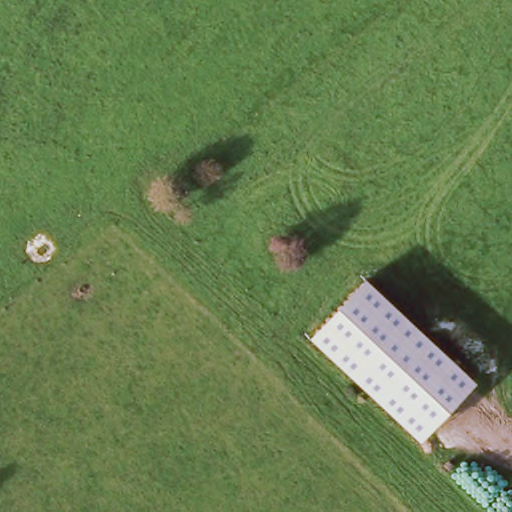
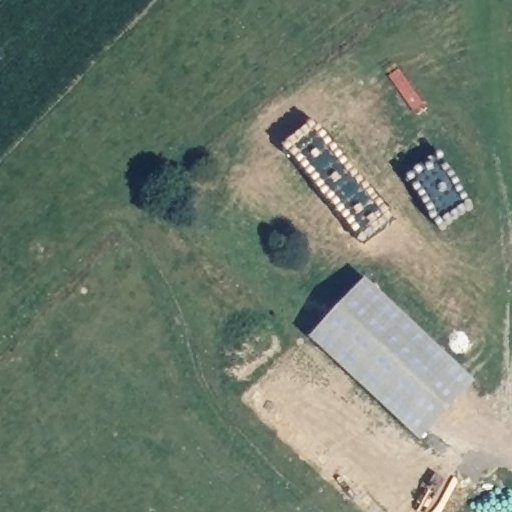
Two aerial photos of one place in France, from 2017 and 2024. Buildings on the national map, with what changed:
unchanged [(475,387),(421,445),(309,342),(365,280),(475,387)]

